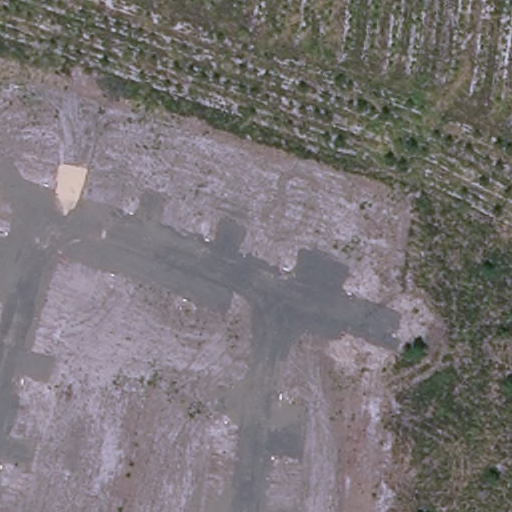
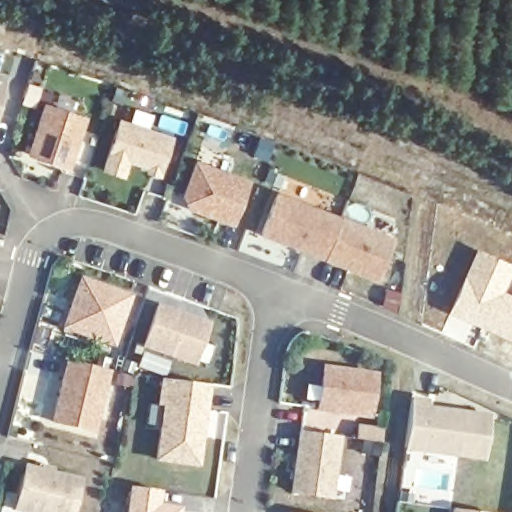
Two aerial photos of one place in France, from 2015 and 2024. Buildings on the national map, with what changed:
new [(6,82),(0,109),(0,80),(6,82)]
new [(46,106),(85,119),(69,167),(30,154),(46,106)]
new [(120,122),(171,139),(160,171),(128,161),(122,176),(104,170),(120,122)]
new [(197,164),(248,183),(232,224),(190,209),(184,197),(197,164)]
new [(278,196),(340,220),(325,259),(263,235),(278,196)]
new [(340,220),(392,240),(376,280),(353,271),(353,270),(325,259),(340,220)]
new [(512,278),(506,289),(512,291),(512,341),(501,337),(446,313),(474,247),(512,264),(512,278)]
new [(82,277),(131,295),(113,343),(65,326),(82,277)]
new [(141,348),(157,305),(209,323),(194,367),(141,348)]
new [(70,363),(110,373),(95,435),(54,424),(70,363)]
unchanged [(325,368),(376,375),(370,416),(320,409),(325,368)]
new [(150,429),(153,406),(160,407),(164,380),(209,386),(198,466),(158,460),(162,431),(150,429)]
new [(491,415),(486,463),(405,452),(412,398),(431,400),(430,407),(491,415)]
new [(302,432),(340,437),(331,497),(293,492),(302,432)]
unchanged [(79,480),(71,512),(28,512),(15,508),(25,467),(79,480)]
new [(161,491),(160,502),(181,506),(180,512),(125,512),(128,485),(161,491)]
new [(464,512),(451,512),(451,511),(464,512)]

